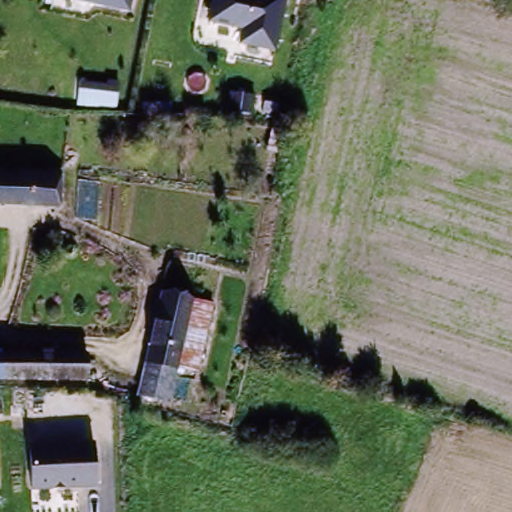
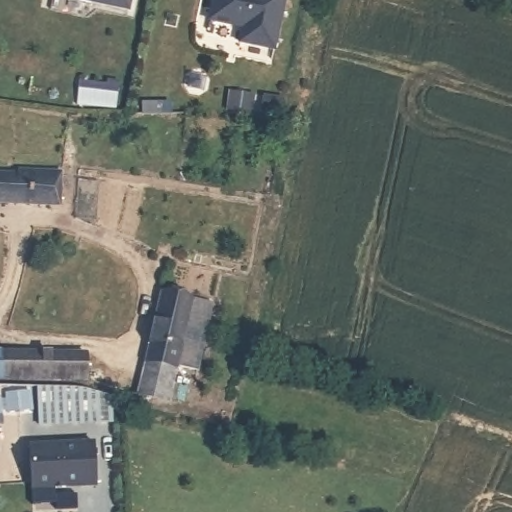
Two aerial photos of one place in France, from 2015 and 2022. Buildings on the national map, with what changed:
unchanged [(129,12),(69,0),(131,0),(129,12)]
unchanged [(274,52),(238,45),(241,31),(208,24),(212,0),(286,0),(274,52)]
unchanged [(60,172),(59,208),(0,204),(0,177),(20,178),(20,170),(60,172)]
unchanged [(155,301),(212,315),(198,380),(179,376),(141,367),(155,301)]
unchanged [(0,378),(0,350),(93,354),(92,382),(0,378)]
unchanged [(174,401),(154,396),(136,391),(141,367),(179,376),(174,401)]
unchanged [(97,487),(31,490),(30,445),(95,443),(97,487)]

